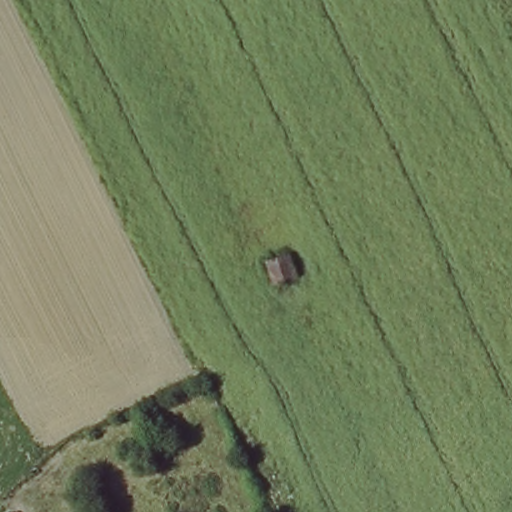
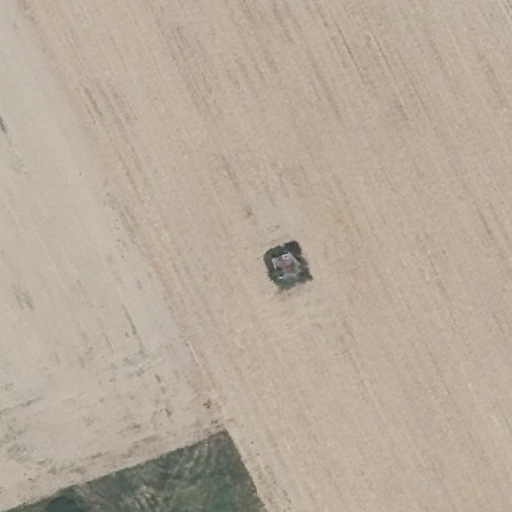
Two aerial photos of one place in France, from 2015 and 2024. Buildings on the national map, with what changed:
unchanged [(292,254),(297,276),(278,279),(275,258),(292,254)]

